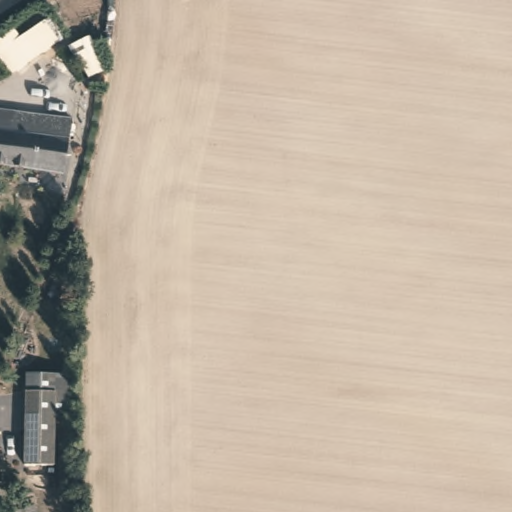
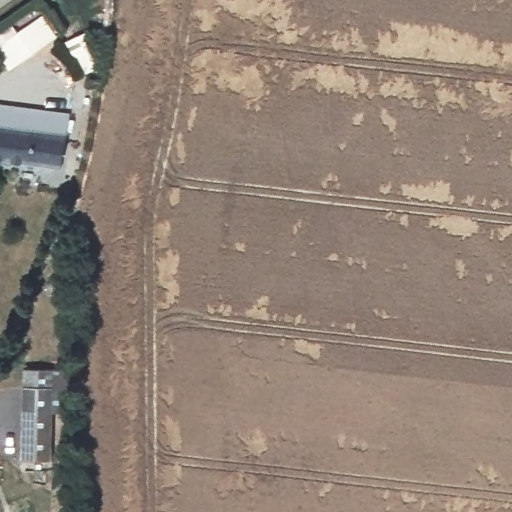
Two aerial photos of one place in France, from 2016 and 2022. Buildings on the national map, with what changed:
unchanged [(63,171),(0,165),(0,132),(1,132),(4,109),(65,113),(63,171)]
unchanged [(49,391),(51,468),(25,468),(22,390),(49,391)]

